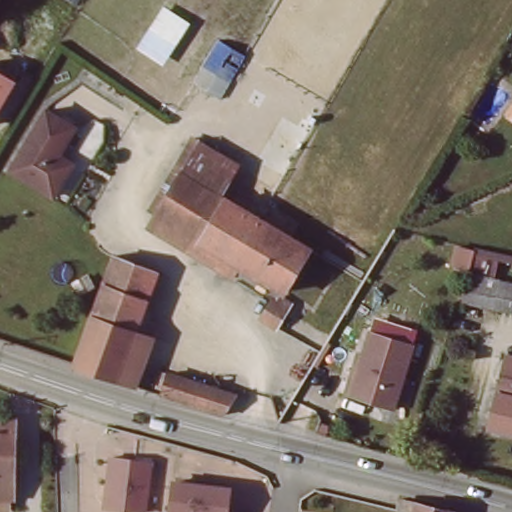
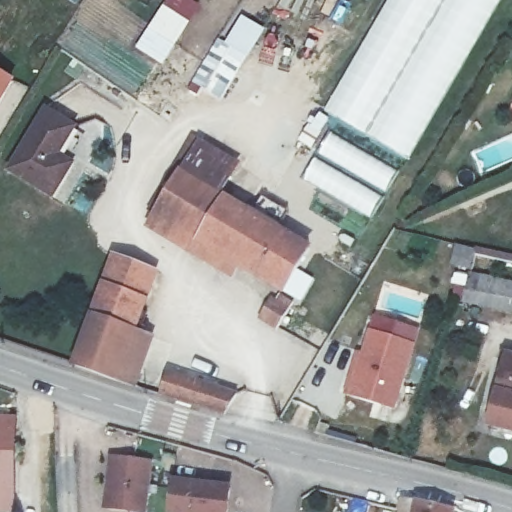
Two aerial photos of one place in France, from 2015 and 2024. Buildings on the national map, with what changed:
unchanged [(85,11),(65,0),(90,0),(85,11)]
new [(407,160),(322,110),(385,0),(500,0),(407,160)]
unchanged [(172,67),(143,54),(170,9),(197,27),(172,67)]
unchanged [(228,101),(203,87),(227,44),(252,59),(228,101)]
unchanged [(0,73),(15,82),(0,105),(0,73)]
unchanged [(510,109),(512,105),(512,110),(510,109)]
unchanged [(75,125),(59,154),(73,162),(55,195),(11,170),(46,109),(75,125)]
new [(400,171),(372,219),(302,177),(331,129),(400,171)]
unchanged [(201,243),(157,216),(203,141),(240,162),(221,195),(229,199),(201,243)]
unchanged [(229,199),(313,249),(284,294),(201,243),(229,199)]
unchanged [(98,295),(115,254),(162,270),(147,310),(98,295)]
unchanged [(470,272),(512,282),(512,317),(465,307),(470,272)]
unchanged [(147,310),(139,331),(122,380),(72,363),(88,322),(98,295),(147,310)]
unchanged [(253,327),(266,306),(274,310),(280,300),(292,306),(273,340),(253,327)]
unchanged [(159,338),(142,386),(122,380),(139,331),(159,338)]
unchanged [(417,350),(400,414),(351,402),(355,385),(360,386),(373,338),(417,350)]
unchanged [(512,359),(512,427),(490,421),(507,358),(512,359)]
unchanged [(159,394),(167,372),(242,393),(229,415),(159,394)]
unchanged [(14,445),(20,446),(17,502),(0,501),(0,417),(13,417),(14,445)]
unchanged [(147,512),(137,512),(104,508),(109,456),(154,461),(147,512)]
unchanged [(232,512),(171,512),(175,480),(234,487),(232,512)]
unchanged [(453,508),(452,512),(398,512),(400,494),(453,508)]

